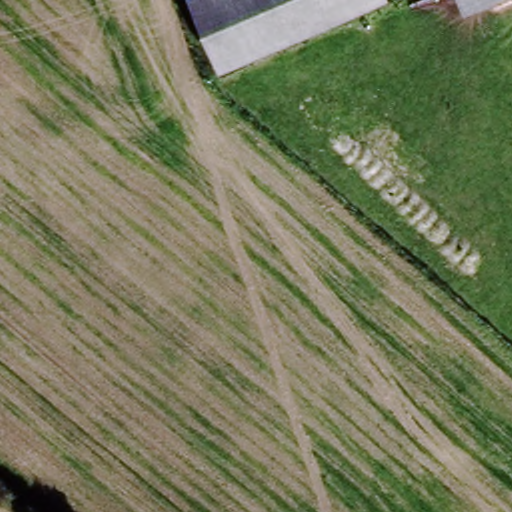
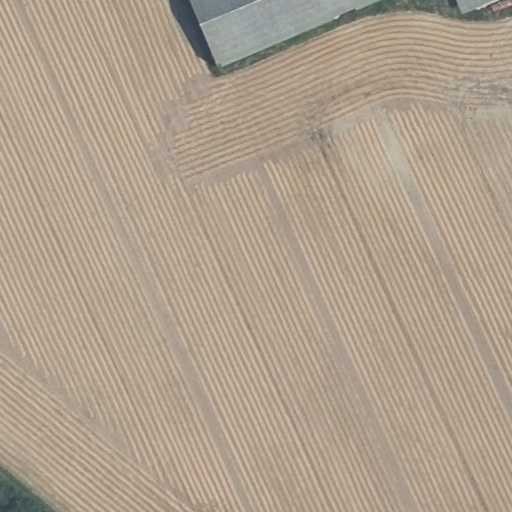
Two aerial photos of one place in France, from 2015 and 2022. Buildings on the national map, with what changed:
unchanged [(218,75),(185,0),(382,0),(218,75)]
unchanged [(464,15),(457,0),(501,0),(464,15)]

